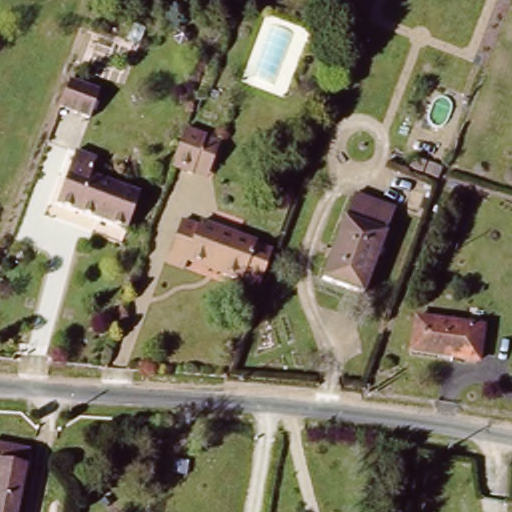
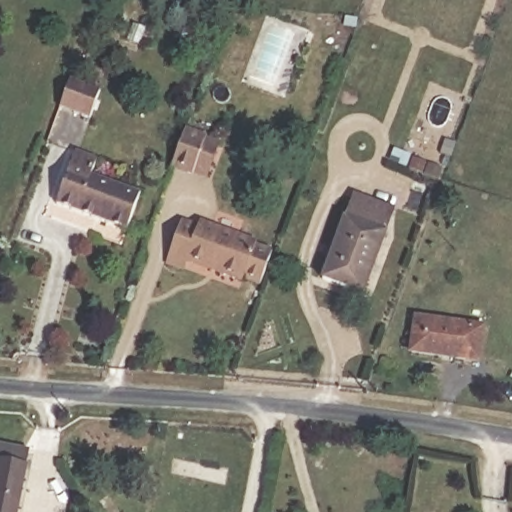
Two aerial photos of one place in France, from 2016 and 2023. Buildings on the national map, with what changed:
unchanged [(95,113),(63,101),(74,73),(105,85),(95,113)]
unchanged [(193,177),(192,180),(170,172),(184,134),(206,142),(205,144),(219,149),(213,164),(207,182),(193,177)]
unchanged [(75,154),(96,162),(91,176),(139,194),(124,232),(55,205),(75,154)]
unchanged [(385,238),(344,223),(353,199),(393,214),(385,238)]
unchanged [(248,244),(266,251),(254,283),(237,277),(236,280),(181,259),(178,268),(161,261),(176,221),(192,227),(194,222),(249,242),(248,244)]
unchanged [(385,238),(363,298),(322,283),(344,223),(385,238)]
unchanged [(416,322),(483,331),(478,365),(412,356),(416,322)]
unchanged [(37,440),(22,512),(0,512),(0,433),(37,440)]

